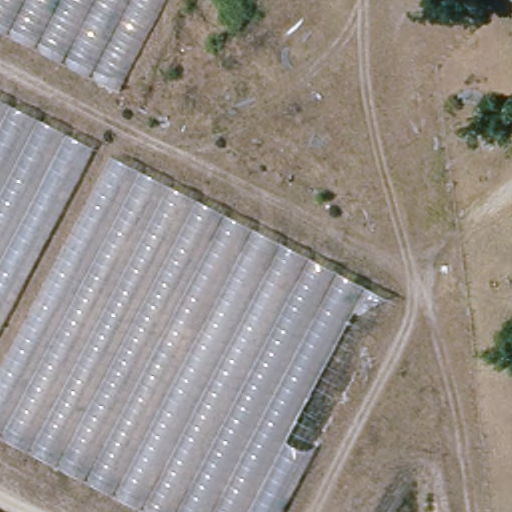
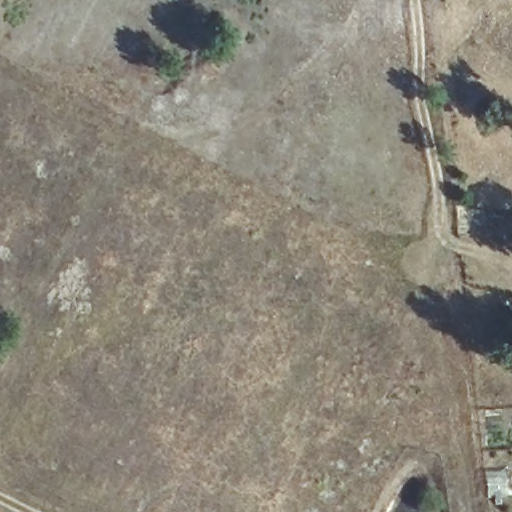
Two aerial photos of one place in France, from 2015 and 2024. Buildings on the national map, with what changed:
demolished [(158,0),(111,88),(0,30),(0,0),(158,0)]
demolished [(0,437),(0,99),(162,184),(385,302),(267,512),(143,512),(0,437)]

